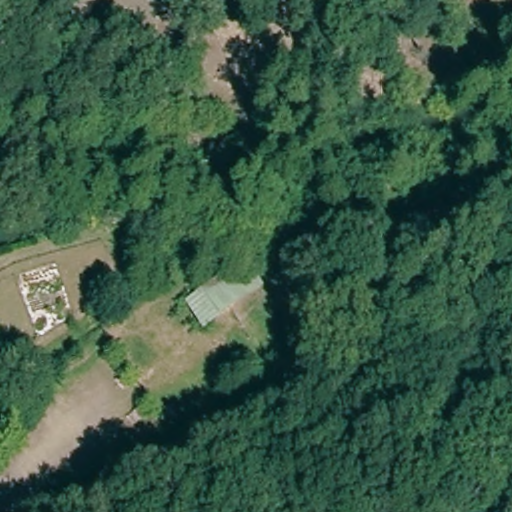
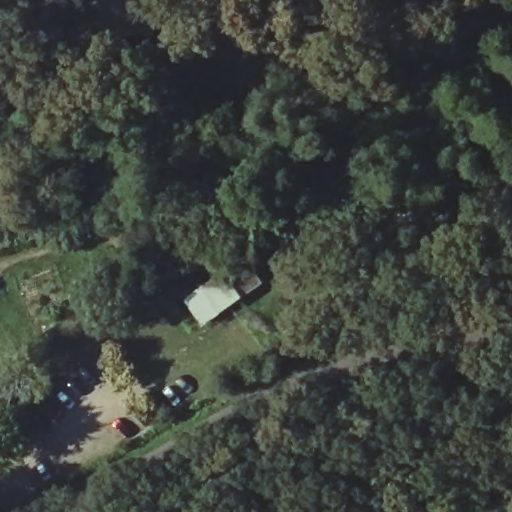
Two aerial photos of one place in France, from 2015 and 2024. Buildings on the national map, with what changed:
unchanged [(168,46),(79,49),(79,0),(167,0),(168,46)]
unchanged [(194,301),(250,261),(270,288),(212,331),(194,301)]

